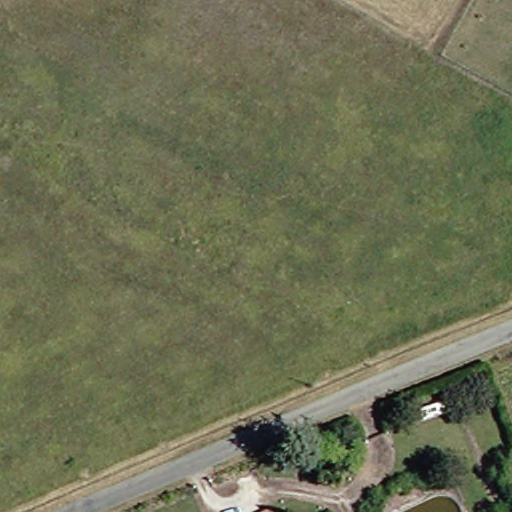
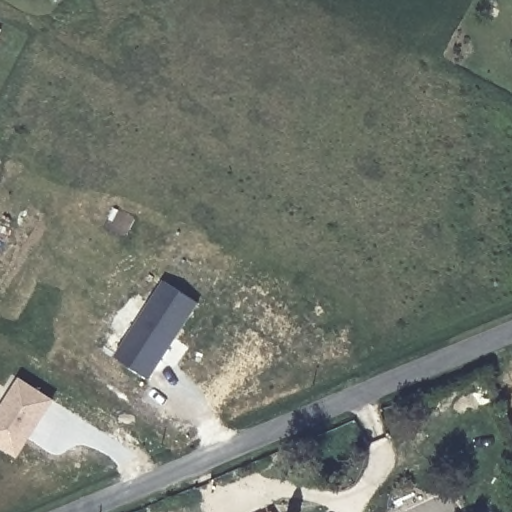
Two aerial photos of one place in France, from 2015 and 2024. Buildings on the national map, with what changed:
new [(151,378),(116,357),(164,279),(200,303),(151,378)]
new [(52,401),(16,456),(0,446),(0,412),(20,381),(52,401)]

